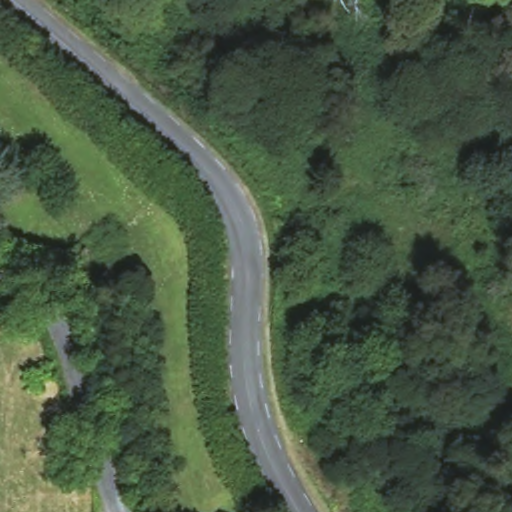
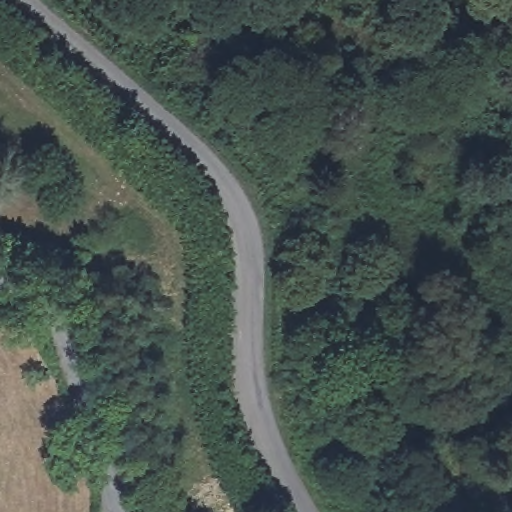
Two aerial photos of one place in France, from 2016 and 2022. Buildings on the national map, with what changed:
[]

